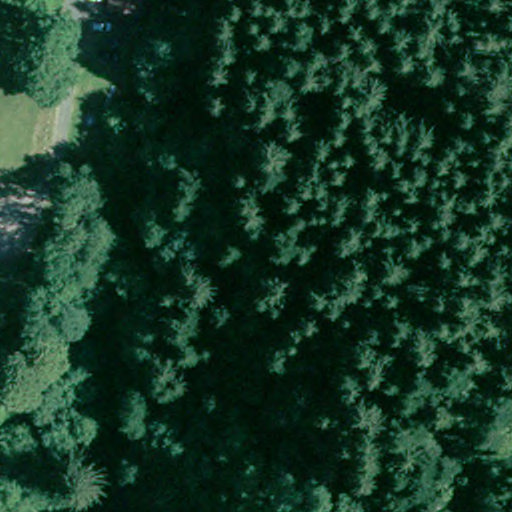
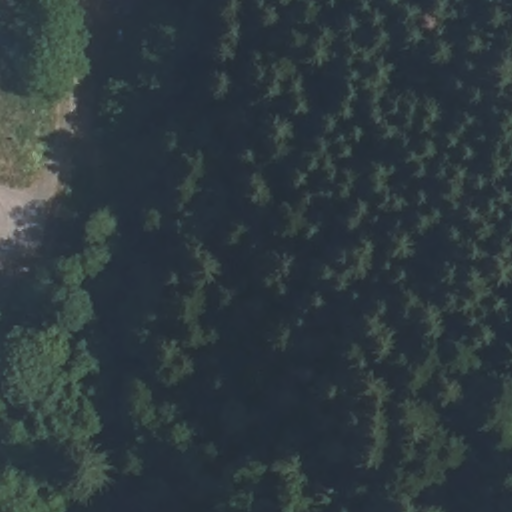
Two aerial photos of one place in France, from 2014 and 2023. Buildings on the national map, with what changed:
unchanged [(158,15),(140,12),(142,0),(161,0),(158,15)]
unchanged [(0,472),(0,427),(21,455),(0,472)]

